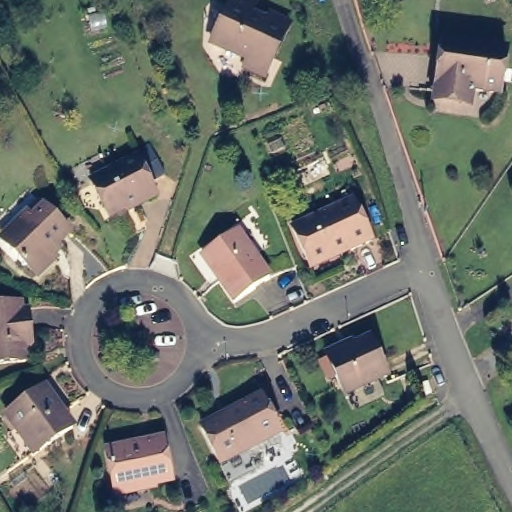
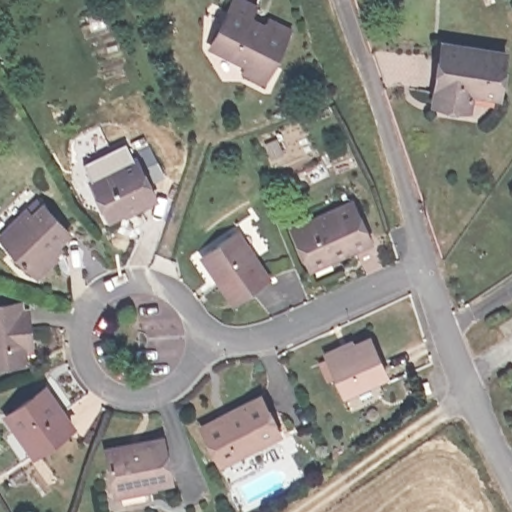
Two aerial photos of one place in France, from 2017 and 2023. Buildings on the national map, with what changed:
unchanged [(254,6),(249,17),(265,25),(269,20),(287,29),(263,79),(244,71),(247,64),(212,45),(233,0),(241,0),(254,6)]
unchanged [(463,102),(436,98),(445,41),(508,51),(501,95),(474,92),(473,104),(463,102)]
unchanged [(135,159),(153,196),(108,217),(90,181),(135,159)]
unchanged [(49,251),(54,258),(37,275),(27,265),(25,266),(18,260),(19,258),(6,244),(0,237),(11,226),(26,212),(37,201),(43,208),(68,232),(49,251)]
unchanged [(292,228),(350,202),(369,242),(339,255),(336,252),(308,264),(292,228)]
unchanged [(268,278),(233,303),(217,280),(201,256),(205,253),(237,232),(268,278)]
unchanged [(15,302),(15,313),(22,313),(27,350),(20,352),(20,361),(0,363),(0,304),(15,302)]
unchanged [(386,376),(344,395),(327,357),(324,352),(350,340),(353,345),(368,338),(386,376)]
unchanged [(428,382),(432,393),(425,394),(423,384),(428,382)]
unchanged [(44,394),(72,433),(35,459),(7,419),(44,394)]
unchanged [(265,396),(284,433),(225,464),(207,429),(240,411),(240,409),(265,396)]
unchanged [(161,436),(169,476),(115,487),(107,446),(161,436)]

